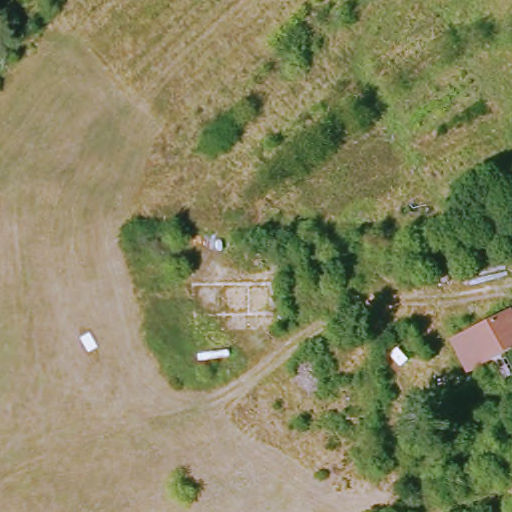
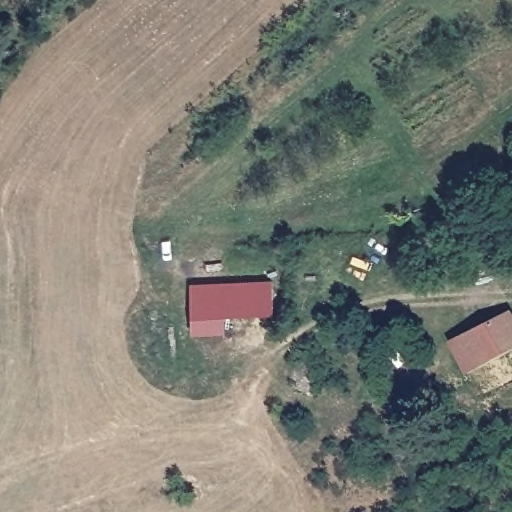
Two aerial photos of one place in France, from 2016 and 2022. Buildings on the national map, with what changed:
new [(225,316),(225,332),(193,334),(191,284),(272,280),(272,313),(225,316)]
unchanged [(458,350),(512,321),(512,363),(493,373),(476,385),(472,375),(458,350)]

